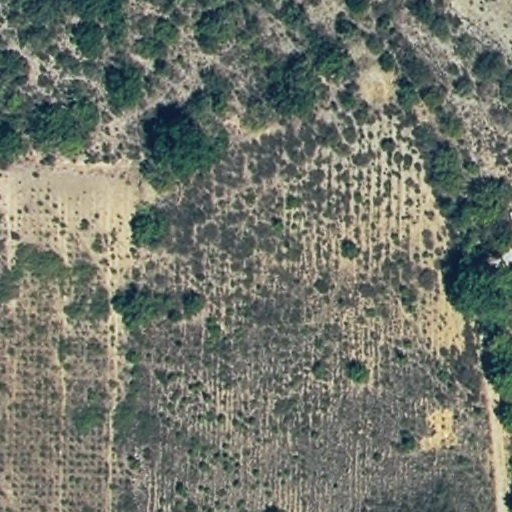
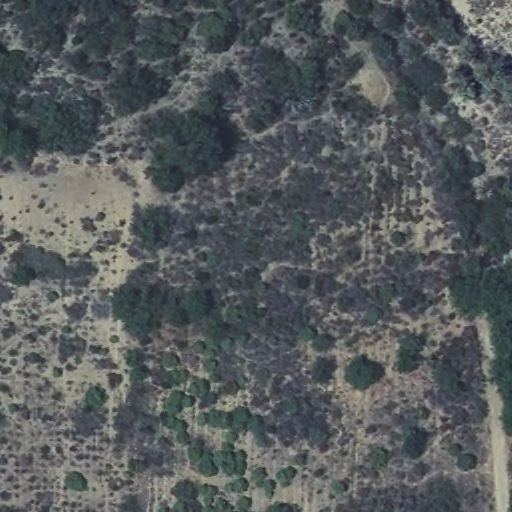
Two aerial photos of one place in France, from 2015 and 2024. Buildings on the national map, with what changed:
unchanged [(512,209),(512,221),(510,210),(512,209)]

